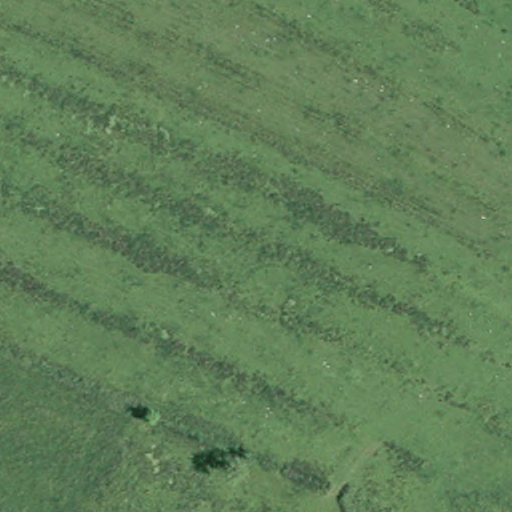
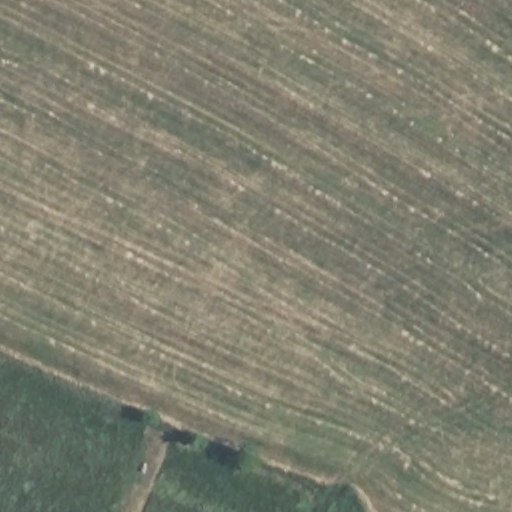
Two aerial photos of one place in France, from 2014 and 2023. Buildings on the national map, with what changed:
[]

